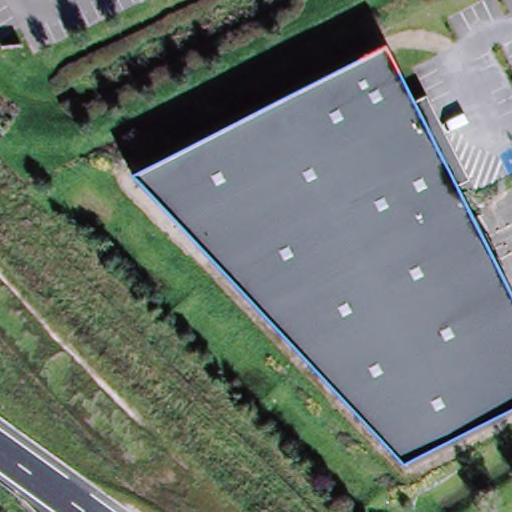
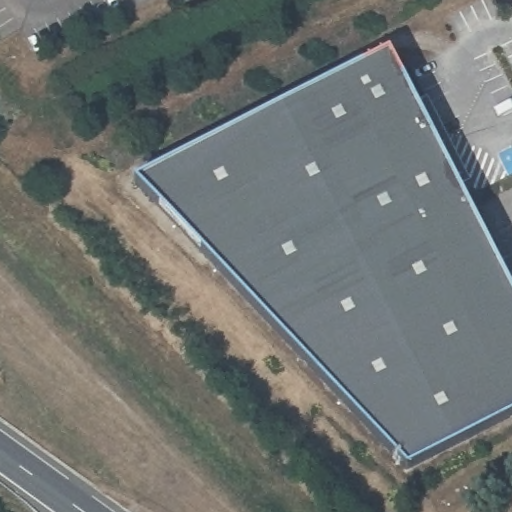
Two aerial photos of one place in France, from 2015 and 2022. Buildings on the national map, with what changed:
unchanged [(512,287),(512,418),(415,467),(143,179),(395,52),(512,287)]

